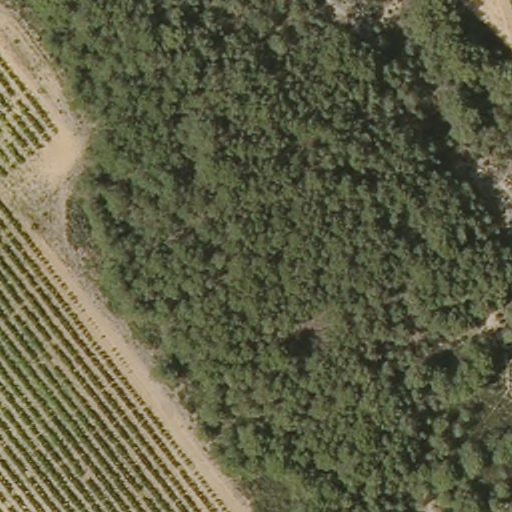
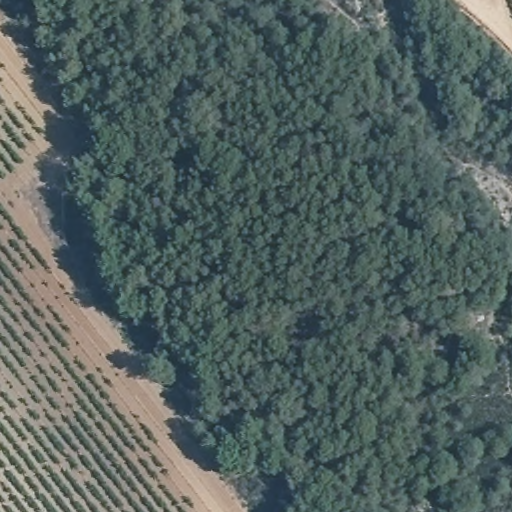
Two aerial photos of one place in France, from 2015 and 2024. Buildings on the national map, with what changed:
[]

